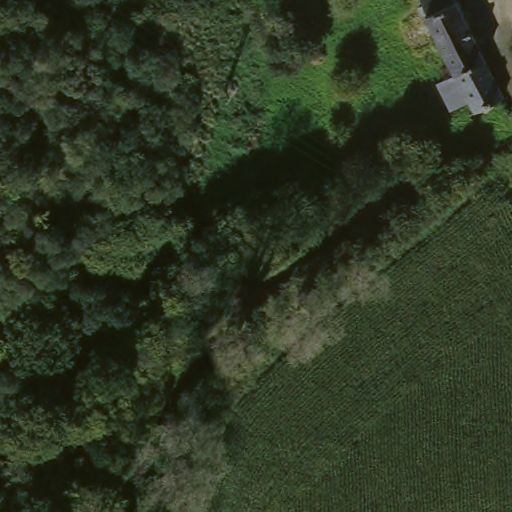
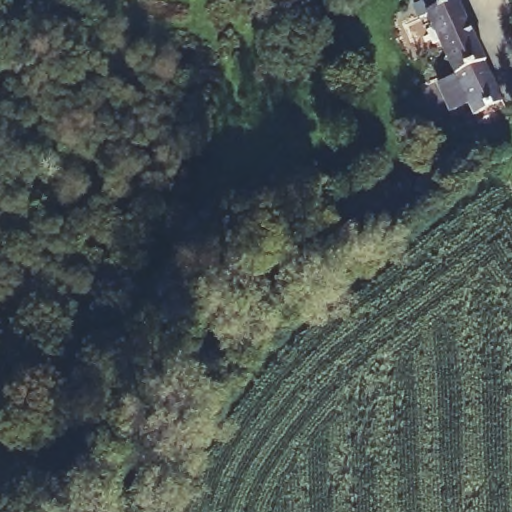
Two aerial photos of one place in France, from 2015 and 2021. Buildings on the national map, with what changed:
unchanged [(490,78),(466,91),(462,92),(430,24),(425,13),(451,0),(490,78)]
unchanged [(506,115),(480,129),(462,92),(466,91),(490,78),(508,115),(506,115)]

